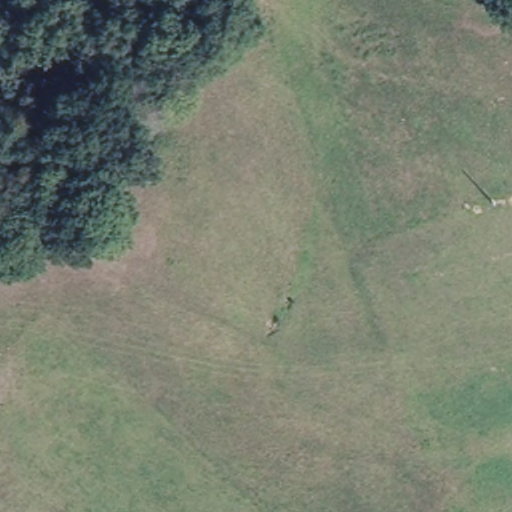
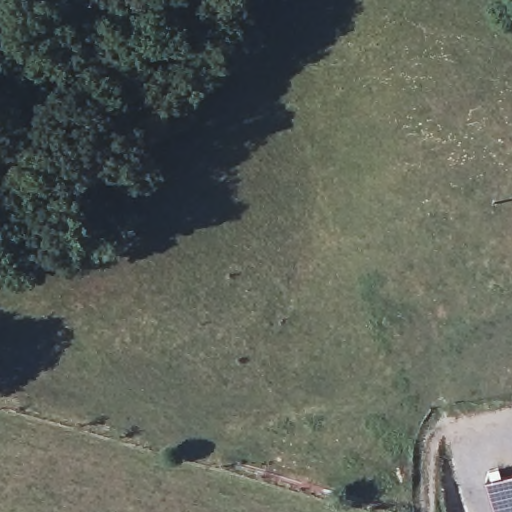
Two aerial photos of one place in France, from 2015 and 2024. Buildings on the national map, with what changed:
new [(512,474),(512,512),(494,512),(486,482),(512,474)]

